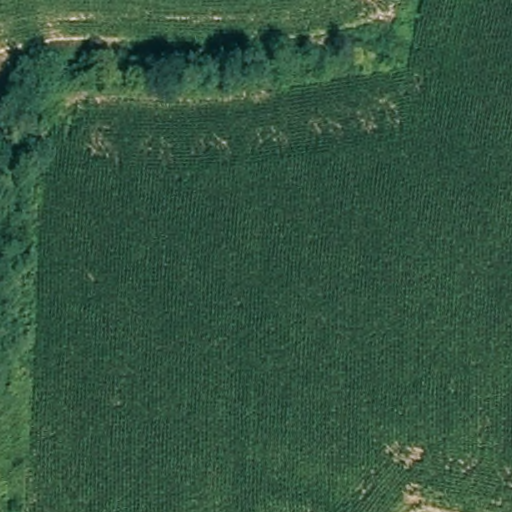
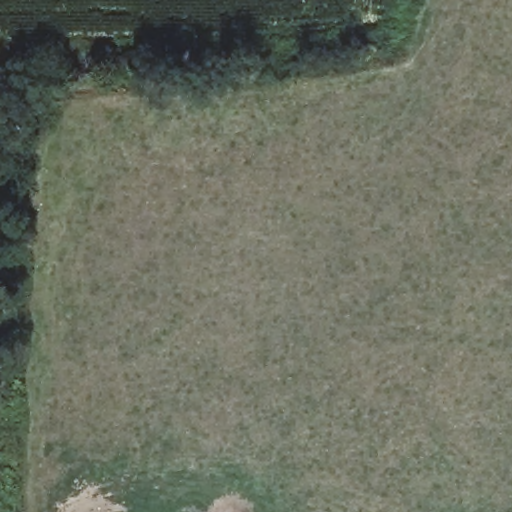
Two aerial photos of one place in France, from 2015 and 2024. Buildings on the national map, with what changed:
[]

